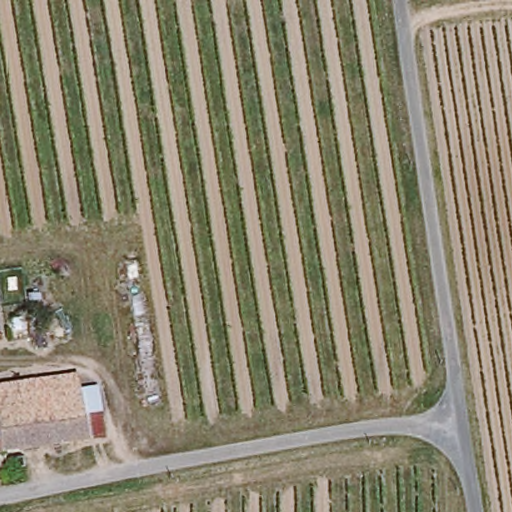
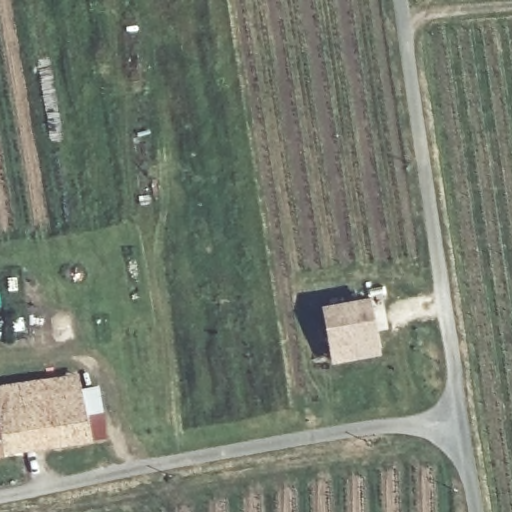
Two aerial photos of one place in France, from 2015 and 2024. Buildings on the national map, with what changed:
new [(320,303),(370,295),(379,352),(330,360),(320,303)]
unchanged [(0,455),(0,386),(52,376),(77,371),(80,390),(85,413),(95,411),(98,439),(91,440),(0,455)]

